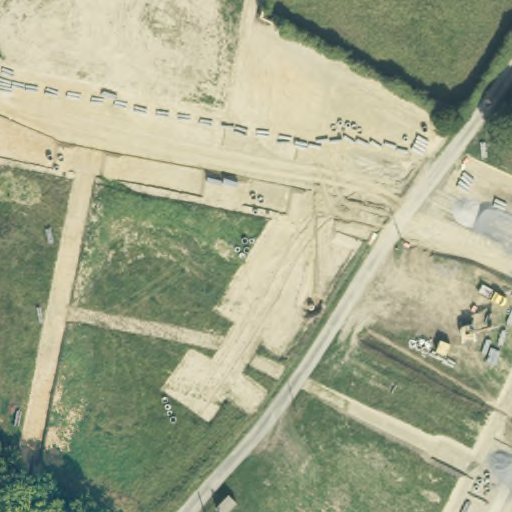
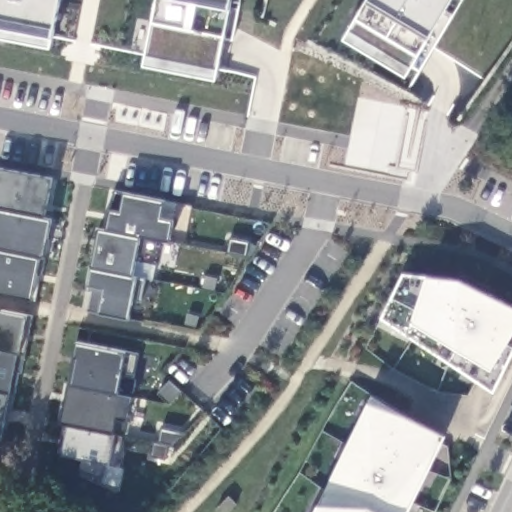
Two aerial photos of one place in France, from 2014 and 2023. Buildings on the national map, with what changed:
new [(52,35),(54,45),(0,34),(0,0),(59,0),(52,35)]
new [(229,6),(216,67),(213,80),(143,64),(147,54),(158,0),(230,0),(229,6)]
new [(430,37),(405,75),(345,37),(365,0),(452,0),(430,37)]
new [(51,179),(43,216),(51,219),(45,255),(40,255),(40,257),(0,249),(0,168),(51,179)]
new [(162,217),(173,219),(169,240),(162,239),(156,261),(135,259),(131,273),(136,275),(145,276),(141,299),(132,297),(130,317),(102,312),(85,309),(89,283),(101,229),(107,230),(112,210),(114,190),(126,194),(162,201),(162,217)]
new [(40,257),(32,298),(0,293),(0,249),(40,257)]
new [(428,277),(460,280),(512,306),(512,356),(495,390),(383,316),(405,275),(428,277)]
new [(0,392),(0,310),(27,315),(20,350),(17,352),(9,395),(0,392)]
new [(125,351),(138,353),(134,375),(122,374),(117,393),(131,396),(127,419),(119,418),(115,432),(62,423),(69,384),(77,340),(125,351)]
new [(9,395),(0,431),(0,392),(9,395)]
new [(445,435),(408,512),(316,512),(321,503),(370,402),(373,394),(445,435)]
new [(115,432),(122,436),(117,463),(109,463),(100,476),(82,467),(87,457),(64,452),(70,425),(115,432)]
new [(237,504),(230,512),(219,512),(216,510),(229,496),(237,504)]

